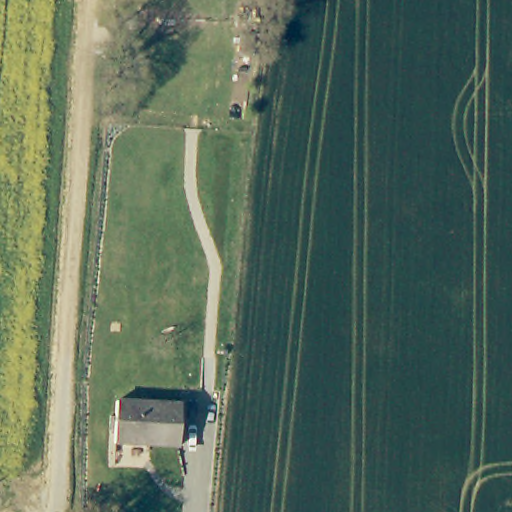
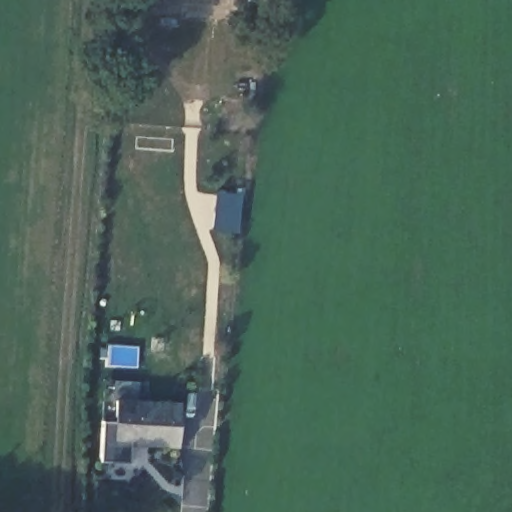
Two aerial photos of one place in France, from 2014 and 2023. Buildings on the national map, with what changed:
unchanged [(180,403),(177,444),(112,442),(115,400),(180,403)]

